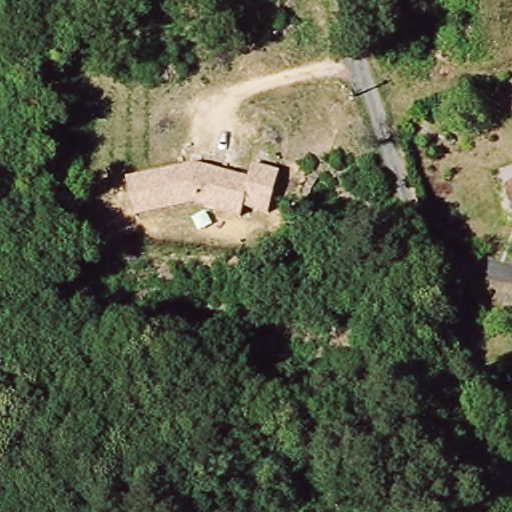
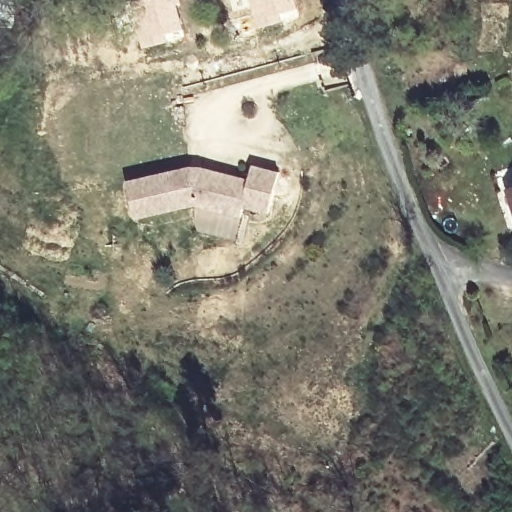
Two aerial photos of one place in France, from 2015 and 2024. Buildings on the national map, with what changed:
new [(177,4),(185,38),(142,49),(132,0),(180,0),(181,2),(177,4)]
new [(257,30),(250,10),(232,15),(228,0),(296,0),(300,19),(257,30)]
unchanged [(190,162),(246,175),(252,160),(280,166),(269,212),(244,206),(242,216),(193,204),(135,217),(125,180),(190,162)]
unchanged [(512,190),(512,199),(510,190),(512,190)]

